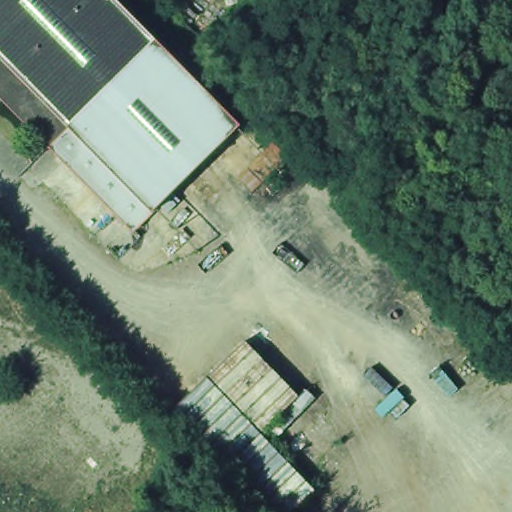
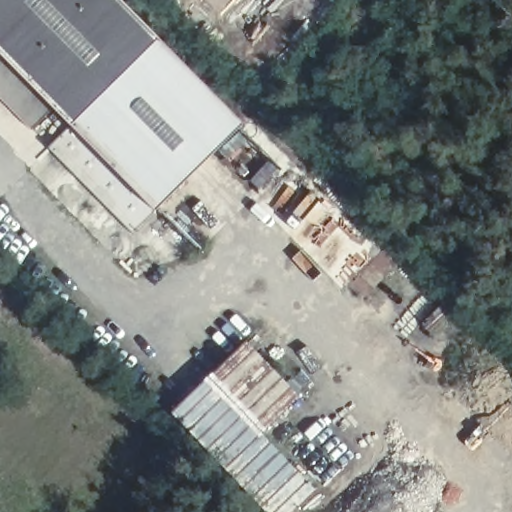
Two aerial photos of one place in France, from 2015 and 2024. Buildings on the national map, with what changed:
unchanged [(0,0),(128,0),(162,34),(74,120),(0,45),(0,0)]
unchanged [(186,59),(246,119),(136,228),(71,161),(51,142),(74,120),(162,34),(186,59)]
unchanged [(51,142),(0,90),(0,45),(74,120),(51,142)]

